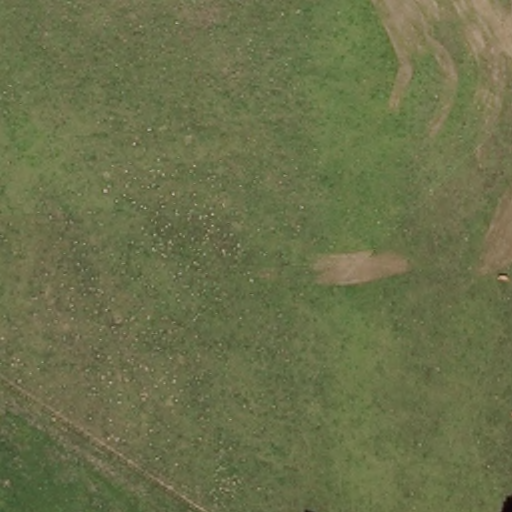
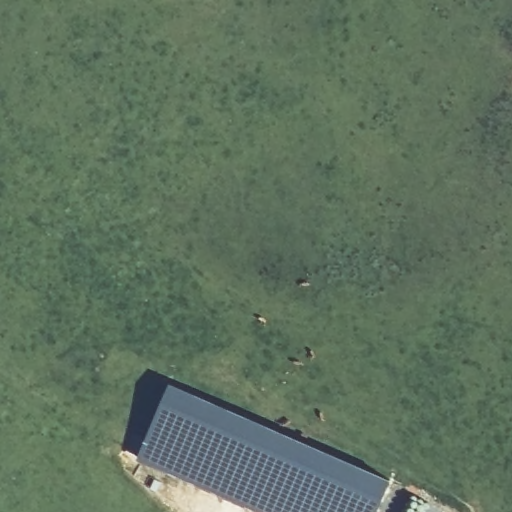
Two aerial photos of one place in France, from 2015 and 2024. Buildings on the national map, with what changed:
new [(174,385),(397,478),(382,512),(273,512),(144,458),(174,385)]

